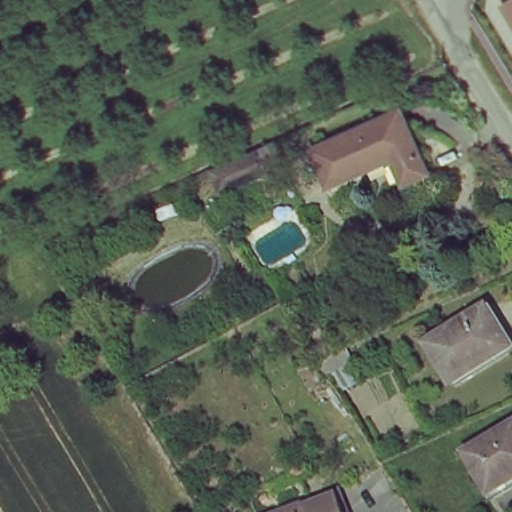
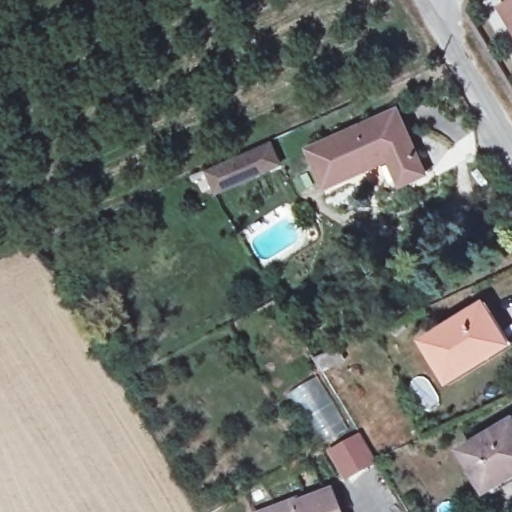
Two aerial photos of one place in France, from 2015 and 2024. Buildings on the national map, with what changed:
unchanged [(499,8),(511,0),(512,0),(512,32),(499,8)]
unchanged [(388,163),(328,191),(308,150),(401,108),(431,175),(403,190),(388,163)]
unchanged [(275,165),(219,189),(211,171),(267,147),(275,165)]
unchanged [(423,341),(483,300),(499,322),(512,342),(512,343),(503,350),(453,383),(423,341)]
unchanged [(317,355),(344,344),(352,362),(327,372),(317,355)]
unchanged [(485,495),(458,455),(512,421),(512,478),(485,495)]
new [(379,463),(345,483),(327,453),(361,433),(379,463)]
unchanged [(278,512),(299,505),(303,511),(333,501),(337,512),(278,512)]

